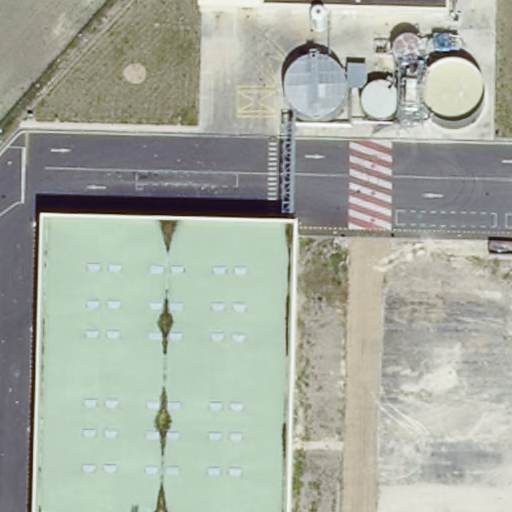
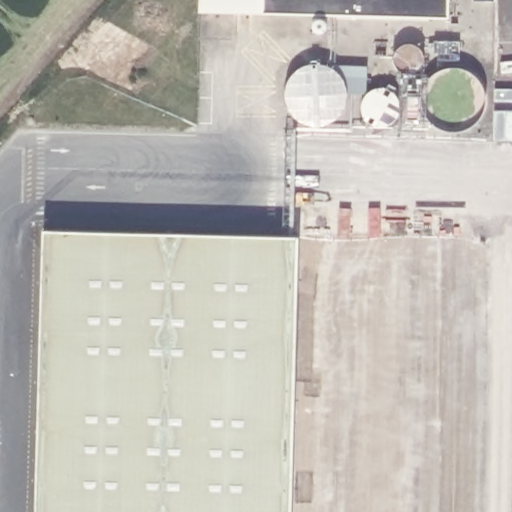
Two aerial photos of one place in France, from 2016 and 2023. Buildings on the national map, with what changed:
unchanged [(201,0),(450,0),(450,19),(262,14),(200,11),(201,0)]
unchanged [(298,235),(290,512),(36,512),(43,228),(298,235)]

